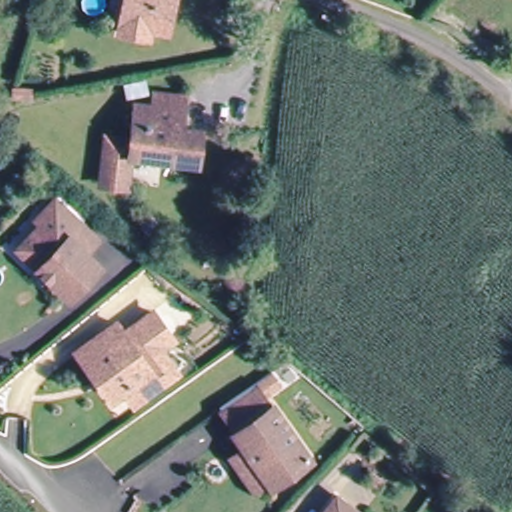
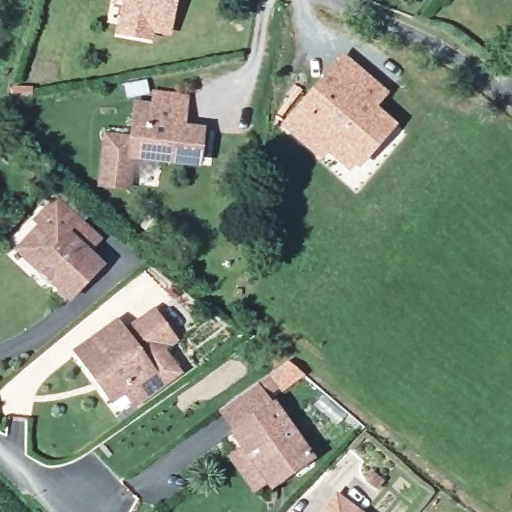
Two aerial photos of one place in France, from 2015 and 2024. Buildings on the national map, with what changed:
unchanged [(169,13),(150,10),(146,34),(120,29),(125,0),(171,0),(169,13)]
new [(305,141),(286,124),(344,58),(378,88),(365,103),(390,126),(388,128),(386,126),(357,159),(359,160),(357,163),(332,141),(320,154),(305,141)]
unchanged [(185,135),(181,168),(127,161),(130,143),(122,142),(125,113),(145,115),(146,99),(175,102),(174,118),(172,133),(185,135)]
unchanged [(123,193),(97,189),(102,140),(122,142),(130,143),(127,161),(123,193)]
unchanged [(84,251),(99,264),(71,297),(17,248),(39,224),(32,218),(52,196),(97,235),(84,251)]
unchanged [(122,330),(149,309),(170,335),(159,343),(176,365),(136,399),(123,383),(110,394),(75,352),(115,320),(122,330)]
unchanged [(218,412),(252,387),(271,411),(273,409),(308,458),(270,487),(234,440),(236,438),(218,412)]
unchanged [(351,512),(320,512),(330,497),(351,512)]

